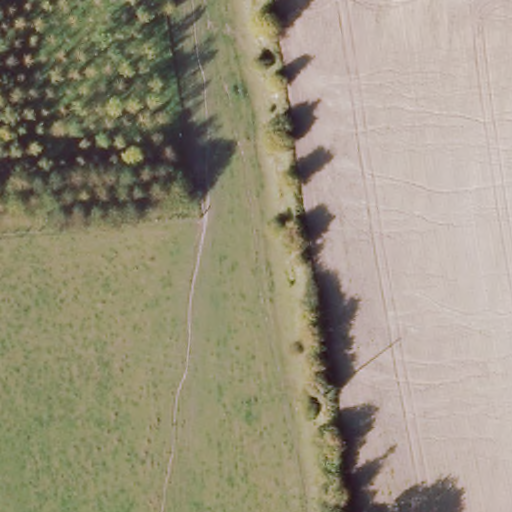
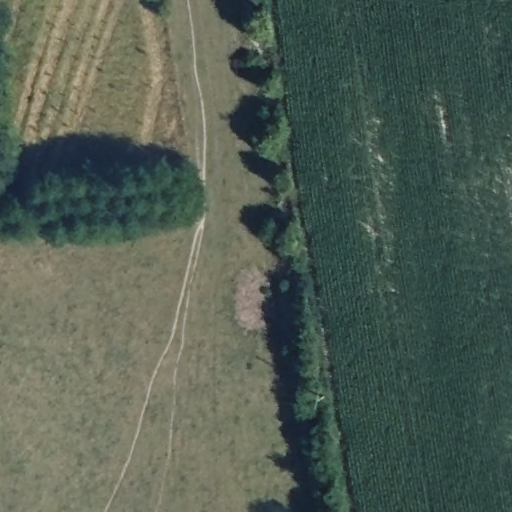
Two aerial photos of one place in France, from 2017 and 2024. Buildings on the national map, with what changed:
[]

